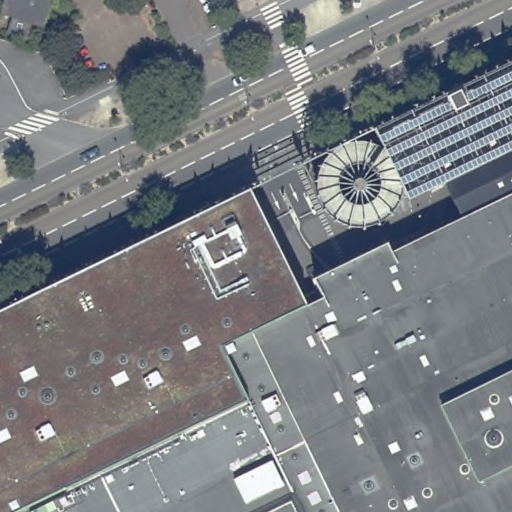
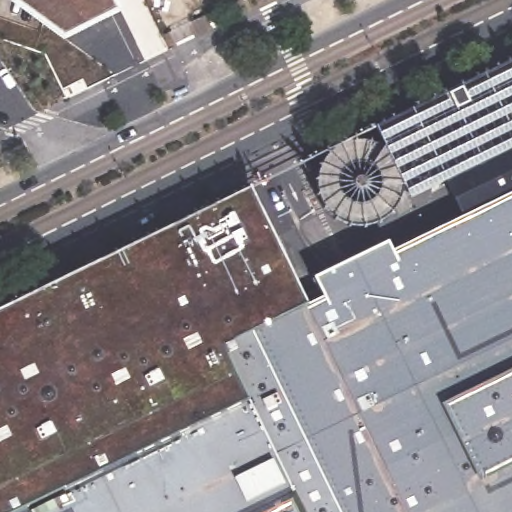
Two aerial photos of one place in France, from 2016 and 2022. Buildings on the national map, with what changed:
demolished [(46,28),(4,13),(9,0),(56,0),(46,28)]
new [(124,10),(69,38),(18,0),(119,0),(124,10)]
unchanged [(512,192),(462,216),(445,183),(410,200),(375,128),(512,62),(512,192)]
unchanged [(18,301),(251,189),(306,303),(321,295),(313,278),(387,242),(391,250),(462,216),(512,192),(512,512),(0,512),(0,310),(18,301)]

